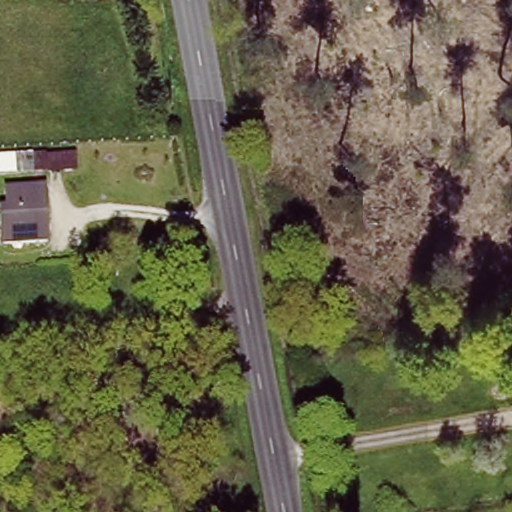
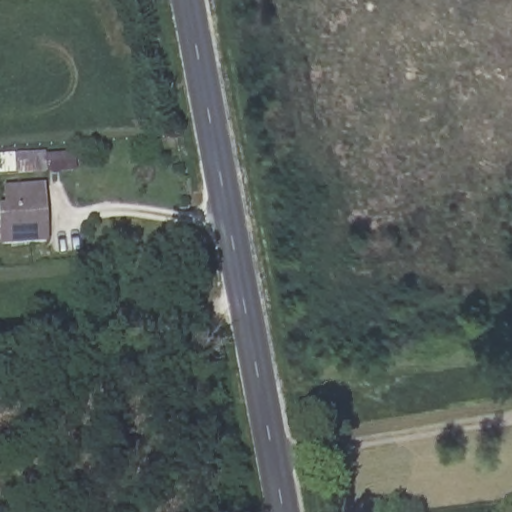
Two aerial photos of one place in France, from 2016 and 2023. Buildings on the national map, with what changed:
unchanged [(78,148),(80,162),(18,166),(17,152),(78,148)]
unchanged [(47,247),(26,246),(27,227),(2,226),(4,200),(50,202),(47,247)]

